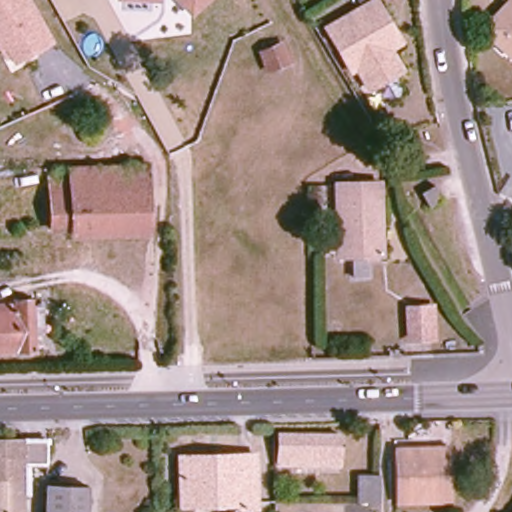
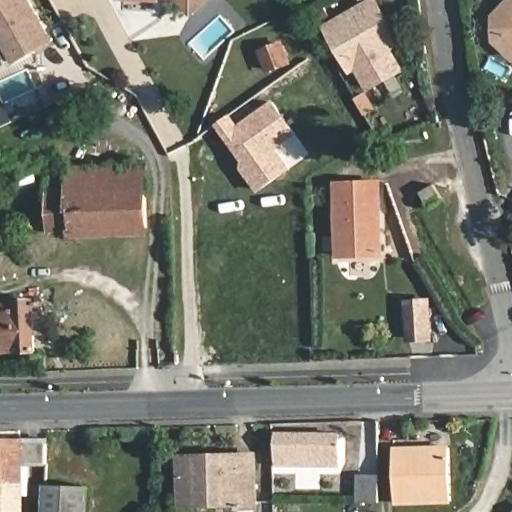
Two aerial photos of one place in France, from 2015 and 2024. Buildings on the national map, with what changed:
unchanged [(11,60),(5,62),(0,51),(0,0),(30,0),(54,42),(14,66),(11,60)]
unchanged [(190,16),(175,0),(207,0),(190,16)]
unchanged [(348,60),(328,26),(372,0),(378,0),(402,40),(391,47),(404,67),(372,87),(359,66),(354,70),(348,60)]
unchanged [(511,52),(511,49),(498,36),(494,36),(494,12),(506,0),(512,0),(512,52),(511,52)]
unchanged [(270,75),(262,56),(284,48),(291,66),(270,75)]
new [(278,149),(292,170),(257,195),(240,168),(245,165),(215,124),(230,114),(239,125),(274,100),(298,135),(278,149)]
unchanged [(68,169),(143,165),(143,193),(68,196),(68,177),(68,169)]
unchanged [(68,196),(143,193),(145,229),(69,232),(69,230),(48,231),(48,175),(61,175),(61,178),(68,177),(68,196)]
unchanged [(384,256),(341,257),(338,184),(382,183),(384,256)]
unchanged [(444,200),(430,207),(421,194),(436,185),(444,200)]
unchanged [(0,354),(0,305),(35,303),(38,352),(0,354)]
unchanged [(429,335),(404,335),(403,307),(429,306),(429,335)]
unchanged [(278,465),(278,435),(339,435),(339,467),(278,465)]
unchanged [(46,465),(21,465),(21,512),(0,512),(0,443),(46,443),(46,465)]
unchanged [(393,451),(450,449),(451,502),(396,503),(393,451)]
unchanged [(240,508),(240,505),(180,507),(179,458),(255,456),(257,508),(240,508)]
unchanged [(379,504),(358,503),(358,476),(378,476),(379,504)]
unchanged [(45,512),(46,486),(86,487),(86,512),(45,512)]

